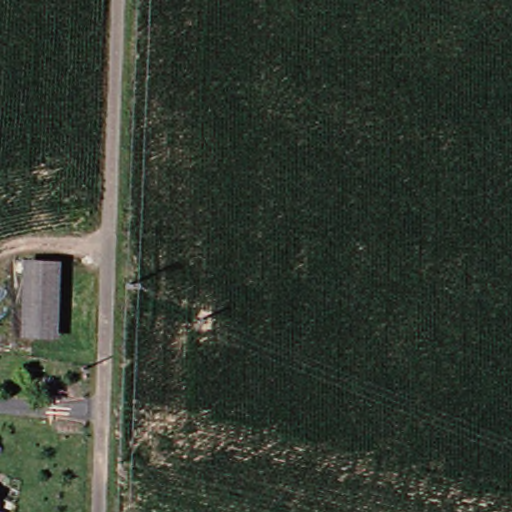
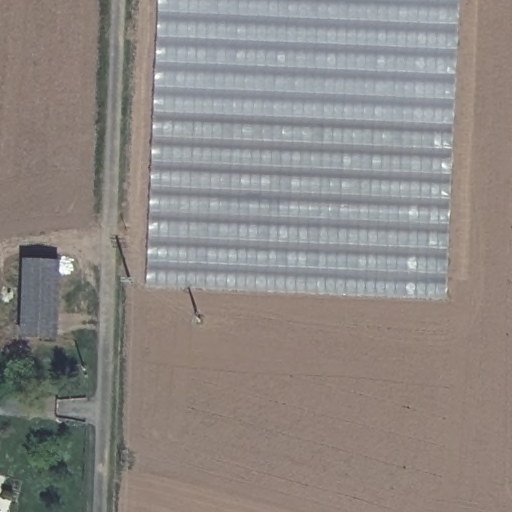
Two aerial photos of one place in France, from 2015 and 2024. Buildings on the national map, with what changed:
new [(448,298),(146,285),(159,0),(461,0),(448,298)]
unchanged [(32,260),(63,265),(52,342),(20,335),(32,260)]
demolished [(36,369),(29,397),(0,390),(0,359),(36,369)]

